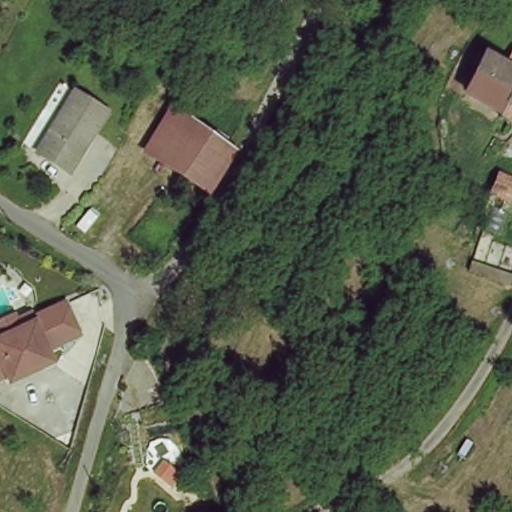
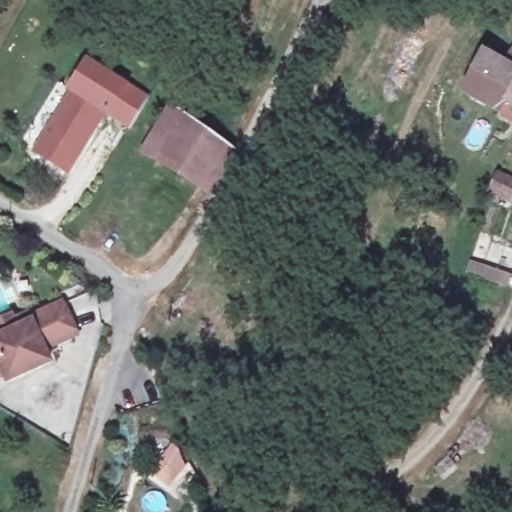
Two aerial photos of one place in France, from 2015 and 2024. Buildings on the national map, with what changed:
unchanged [(507,102),(502,114),(460,97),(476,54),(507,66),(511,51),(512,52),(512,104),(507,102)]
new [(88,59),(131,85),(149,97),(130,131),(107,118),(98,113),(101,108),(69,91),(88,59)]
unchanged [(65,169),(35,152),(69,91),(101,108),(65,169)]
unchanged [(144,152),(165,111),(192,128),(169,166),(144,152)]
unchanged [(192,128),(230,152),(209,187),(169,166),(192,128)]
unchanged [(47,345),(54,361),(2,381),(0,374),(0,314),(31,301),(34,309),(63,294),(79,334),(47,345)]

